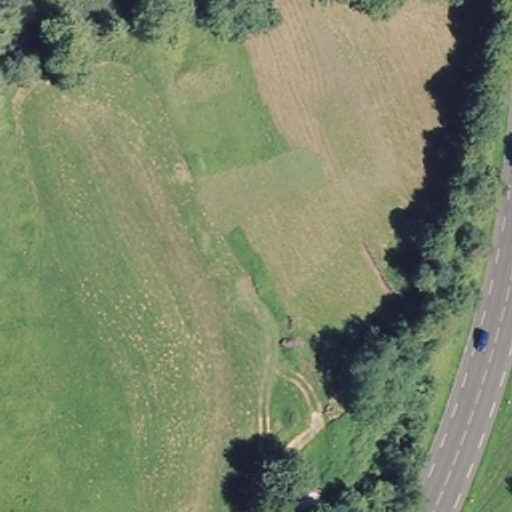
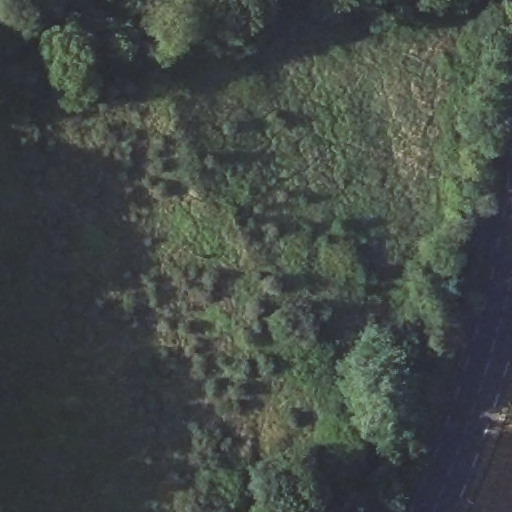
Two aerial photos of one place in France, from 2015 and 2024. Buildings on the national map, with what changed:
unchanged [(321,494),(317,512),(276,512),(280,485),(321,494)]

